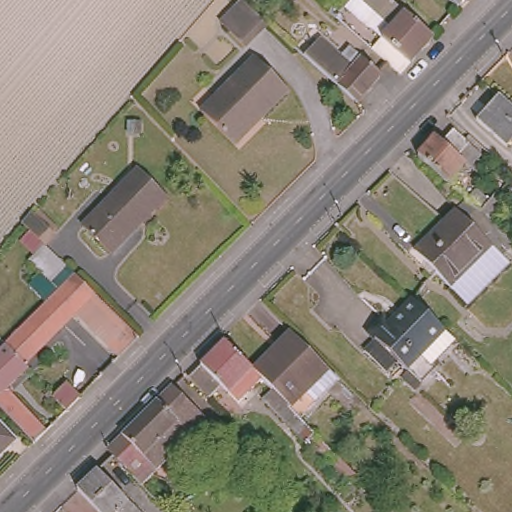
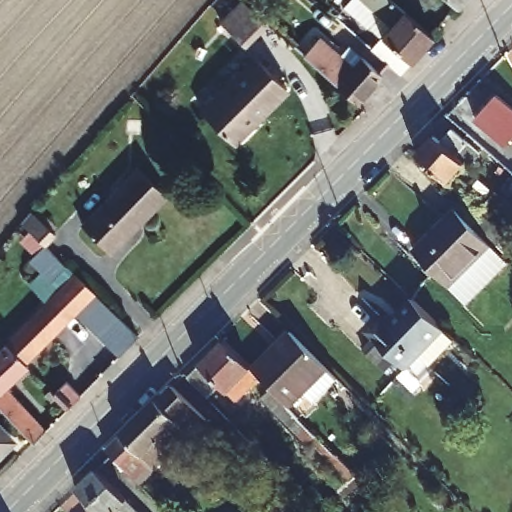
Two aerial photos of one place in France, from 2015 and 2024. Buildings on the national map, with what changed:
unchanged [(432,42),(410,67),(382,43),(392,32),(357,0),(387,0),(432,42)]
unchanged [(457,3),(454,0),(459,0),(457,3)]
unchanged [(262,23),(239,45),(216,23),(238,1),(262,23)]
unchanged [(352,34),(365,20),(382,35),(370,50),(352,34)]
unchanged [(315,39),(349,69),(359,57),(377,74),(354,102),(301,55),(315,39)]
unchanged [(222,86),(251,57),(282,87),(254,117),(222,86)]
unchanged [(252,121),(230,143),(197,112),(222,86),(254,117),(251,120),(252,121)]
unchanged [(504,144),(476,119),(497,95),(512,107),(512,137),(511,136),(504,144)]
unchanged [(487,218),(475,208),(464,198),(415,154),(432,135),(439,142),(451,128),(478,153),(466,166),(462,164),(453,174),(472,191),(481,180),(502,200),(487,218)]
unchanged [(109,195),(136,167),(165,195),(137,224),(109,195)]
unchanged [(81,224),(109,195),(137,224),(110,253),(81,224)]
unchanged [(464,198),(475,208),(464,220),(489,243),(461,272),(449,285),(415,251),(425,239),(464,198)]
unchanged [(32,211),(54,232),(42,243),(22,222),(32,211)]
unchanged [(28,257),(42,243),(65,265),(50,279),(28,257)]
unchanged [(461,272),(489,243),(507,260),(479,289),(467,302),(449,285),(461,272)]
unchanged [(137,336),(117,356),(72,311),(19,361),(2,344),(74,274),(137,336)]
unchanged [(379,316),(387,322),(410,298),(442,329),(454,340),(429,366),(432,369),(420,382),(405,368),(404,368),(394,359),(383,370),(360,349),(372,337),(365,330),(379,316)]
unchanged [(271,390),(252,371),(290,332),(338,380),(300,418),(299,418),(286,405),(275,415),(260,401),(271,390)]
unchanged [(218,387),(205,401),(185,381),(224,342),(250,369),(226,395),(218,387)]
unchanged [(2,344),(19,361),(24,367),(2,387),(43,431),(30,444),(0,413),(0,346),(2,344)]
unchanged [(142,480),(115,452),(110,447),(175,382),(207,415),(142,480)]
unchanged [(10,441),(0,451),(0,430),(10,441)]
unchanged [(96,470),(138,512),(99,512),(77,489),(96,470)]

